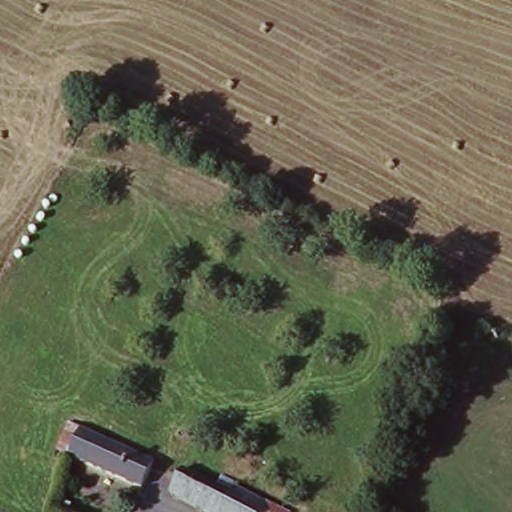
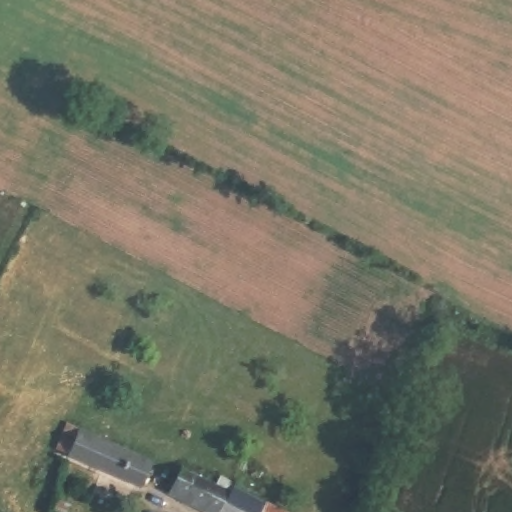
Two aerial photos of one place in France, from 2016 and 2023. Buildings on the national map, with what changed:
unchanged [(141,487),(68,456),(69,452),(56,448),(67,422),(80,428),(153,461),(141,487)]
unchanged [(178,468),(226,491),(229,486),(261,502),(280,512),(201,512),(165,493),(178,468)]

